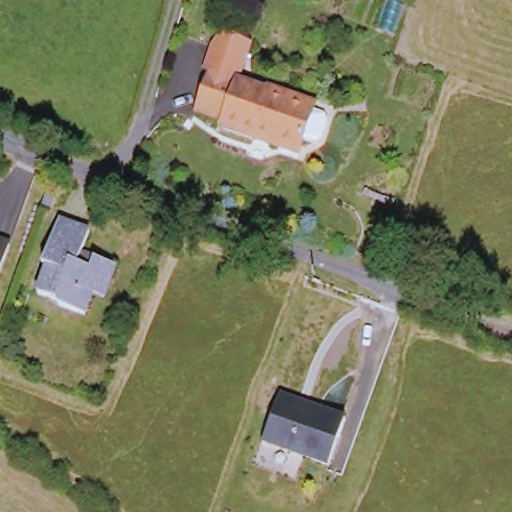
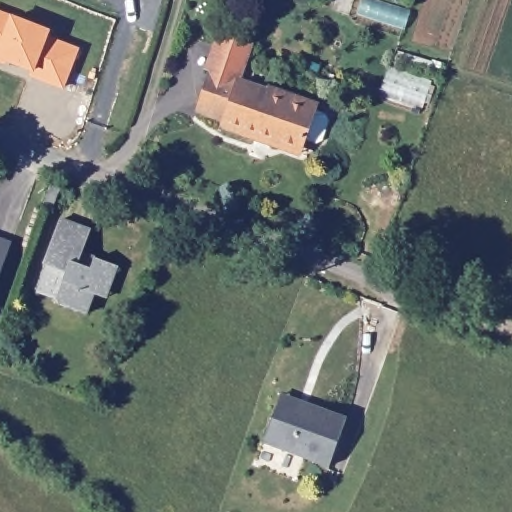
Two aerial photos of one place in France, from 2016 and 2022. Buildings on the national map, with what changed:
new [(29,76),(32,71),(0,58),(0,13),(49,32),(48,37),(79,50),(62,88),(29,76)]
unchanged [(253,141),(221,130),(224,122),(196,112),(211,74),(205,72),(218,34),(248,44),(234,82),(268,93),(269,87),(316,105),(314,110),(326,114),(329,121),(324,139),(316,142),(305,139),(301,149),(299,157),(253,141)]
unchanged [(96,295),(88,315),(63,306),(60,300),(42,293),(52,266),(47,264),(63,220),(93,232),(83,257),(96,262),(98,260),(119,267),(112,287),(108,299),(96,295)]
unchanged [(13,240),(0,277),(0,235),(13,240)]
unchanged [(283,398),(349,422),(331,470),(266,445),(283,398)]

